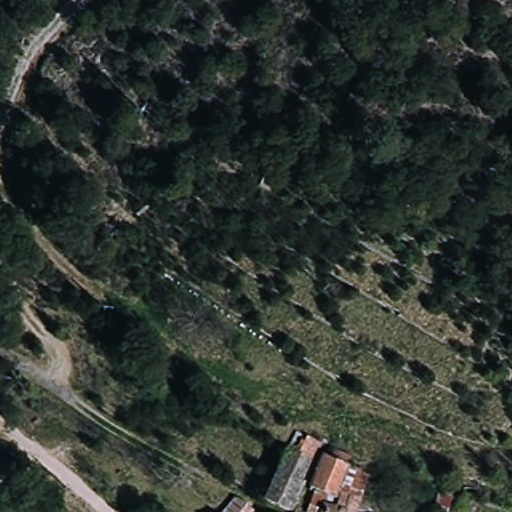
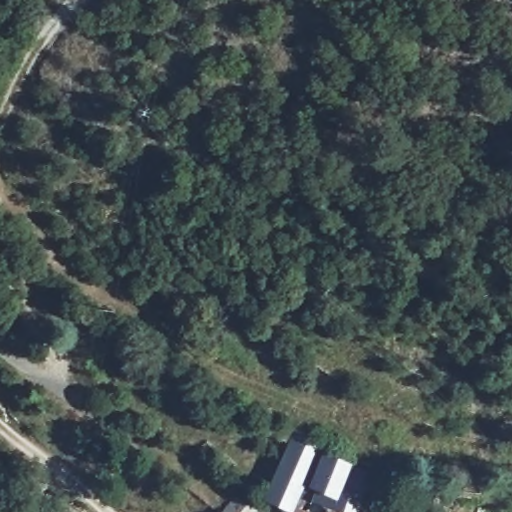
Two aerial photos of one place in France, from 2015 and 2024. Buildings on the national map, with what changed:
unchanged [(320,441),(292,512),(290,512),(265,499),(294,432),(320,441)]
unchanged [(335,506),(338,498),(312,487),(322,453),(370,472),(357,512),(320,512),(323,503),(335,506)]
unchanged [(222,512),(235,496),(254,511),(253,512),(222,512)]

